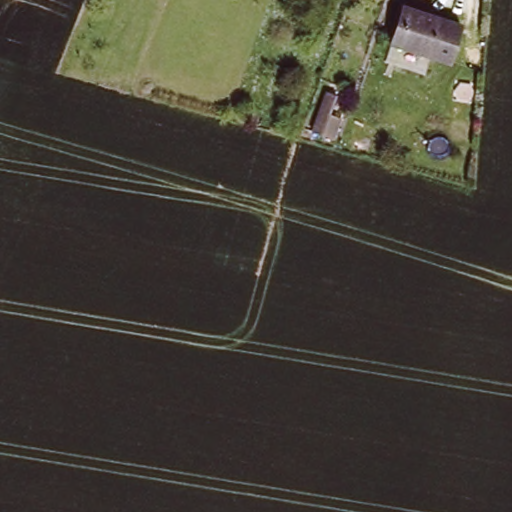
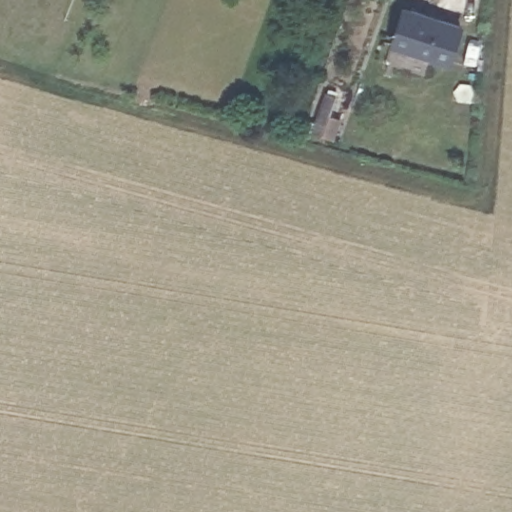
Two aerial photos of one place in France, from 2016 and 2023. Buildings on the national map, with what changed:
unchanged [(460,24),(451,60),(393,46),(402,9),(460,24)]
unchanged [(330,91),(315,131),(303,126),(318,87),(330,91)]

